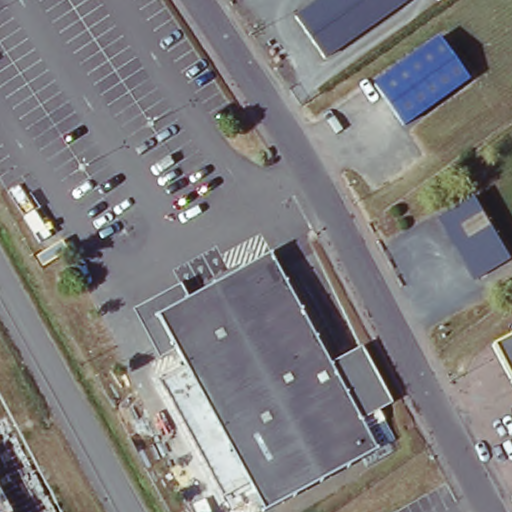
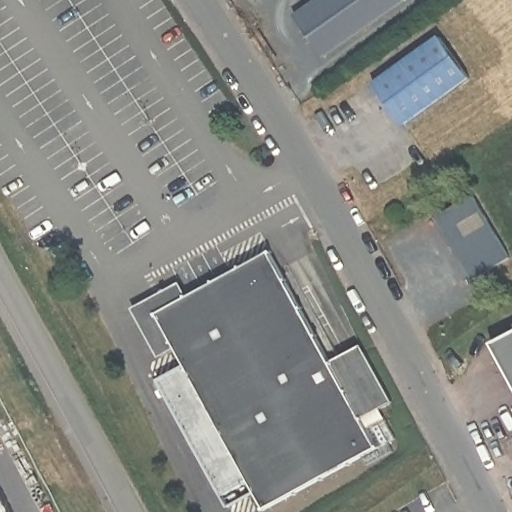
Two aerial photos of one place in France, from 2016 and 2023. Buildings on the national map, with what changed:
unchanged [(318,0),(403,0),(405,1),(322,58),(293,17),(318,0)]
unchanged [(440,39),(469,80),(402,128),(373,86),(440,39)]
unchanged [(473,203),(510,262),(471,286),(435,225),(473,203)]
unchanged [(183,301),(267,253),(333,371),(342,367),(365,354),(392,403),(379,411),(383,421),(365,431),(376,452),(265,512),(260,512),(251,495),(227,508),(157,381),(185,367),(175,352),(155,317),(160,314),(183,301)]
unchanged [(183,301),(160,314),(155,317),(175,352),(159,360),(132,311),(175,287),(183,301)]
unchanged [(512,333),(512,391),(488,345),(512,333)]

